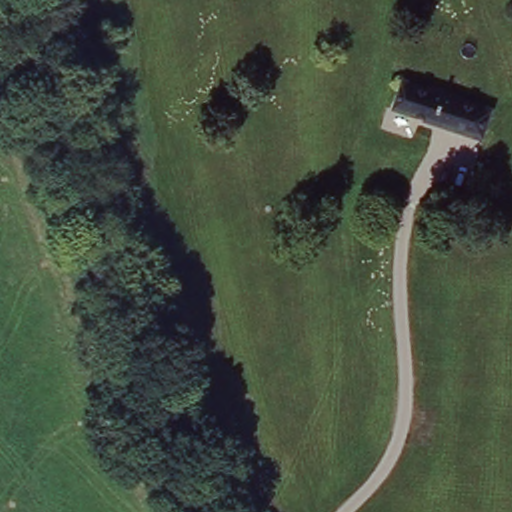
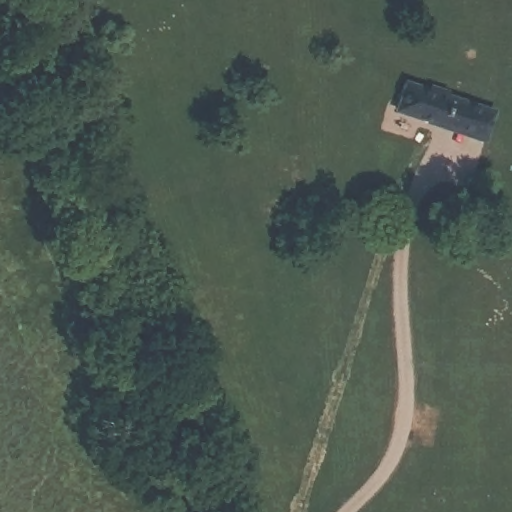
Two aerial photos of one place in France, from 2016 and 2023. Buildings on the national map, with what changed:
unchanged [(430,88),(433,82),(453,90),(451,96),(496,114),(486,138),(397,105),(407,78),(430,88)]

